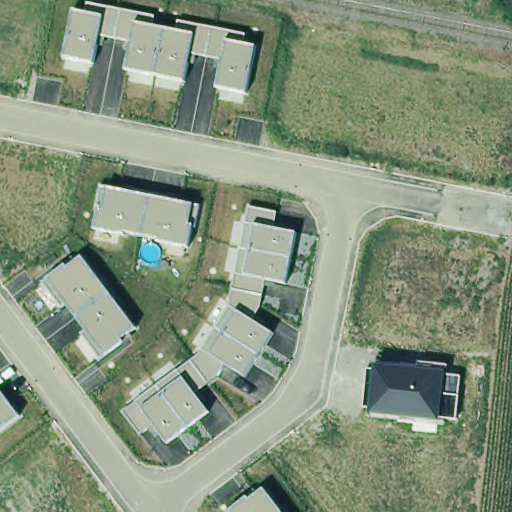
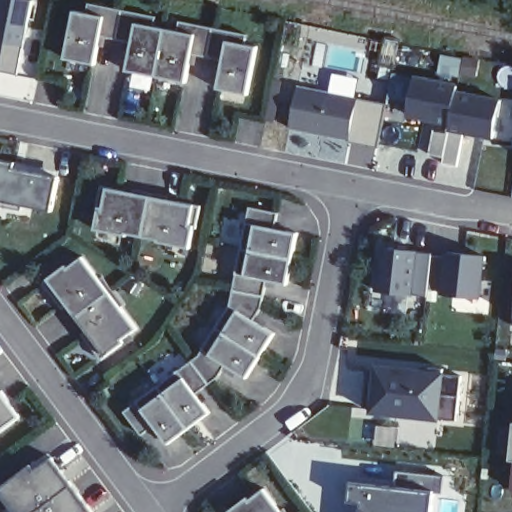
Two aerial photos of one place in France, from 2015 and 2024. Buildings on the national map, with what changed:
new [(23,46),(18,75),(0,72),(0,61),(3,43),(0,43),(0,0),(26,0),(33,1),(23,46)]
unchanged [(75,11),(88,14),(88,4),(156,17),(155,27),(178,31),(180,22),(247,35),(247,45),(257,47),(248,94),(217,88),(225,59),(191,53),(185,81),(127,70),(134,42),(100,35),(95,64),(65,57),(75,11)]
new [(396,45),(392,69),(378,65),(381,43),(396,45)]
new [(460,61),(461,59),(480,59),(475,77),(458,75),(458,79),(437,74),(439,56),(460,61)]
new [(413,76),(456,85),(455,91),(447,128),(442,156),(427,153),(435,119),(406,113),(413,76)]
new [(297,84),(385,102),(376,146),(348,140),(348,138),(288,126),(297,84)]
new [(455,91),(499,99),(492,136),(447,128),(455,91)]
new [(448,127),(462,131),(455,165),(440,162),(448,127)]
new [(17,207),(15,211),(0,208),(0,164),(6,165),(5,171),(49,179),(43,212),(17,207)]
unchanged [(195,205),(201,205),(196,228),(192,227),(190,247),(159,241),(160,238),(125,232),(124,234),(95,228),(98,213),(105,210),(105,207),(98,206),(103,188),(110,189),(195,205)]
unchanged [(123,413),(204,353),(233,302),(250,207),(280,213),(277,229),(295,233),(285,286),(269,282),(259,325),(273,334),(245,377),(230,368),(223,378),(198,392),(211,411),(166,443),(151,426),(138,436),(123,413)]
new [(413,295),(375,291),(380,246),(420,251),(431,253),(431,256),(427,289),(426,296),(413,295)]
new [(442,294),(441,290),(427,289),(431,256),(445,258),(446,250),(486,255),(481,298),(442,294)]
unchanged [(50,277),(66,265),(68,268),(83,258),(136,329),(121,340),(123,342),(123,344),(101,358),(84,333),(88,330),(68,304),(62,307),(45,283),(50,277)]
unchanged [(368,369),(376,370),(376,363),(418,367),(418,362),(448,365),(447,375),(461,375),(458,396),(456,420),(440,418),(440,422),(370,413),(370,408),(363,407),(368,369)]
unchanged [(21,416),(0,432),(0,392),(21,416)]
new [(510,464),(503,463),(506,424),(512,424),(512,495),(505,494),(510,464)]
new [(18,512),(1,490),(33,464),(37,470),(50,459),(91,511),(90,512),(18,512)]
new [(433,490),(432,512),(364,512),(365,497),(351,496),(351,482),(396,486),(397,471),(444,476),(441,490),(433,490)]
unchanged [(247,496),(250,500),(265,490),(281,512),(231,512),(229,509),(247,496)]

